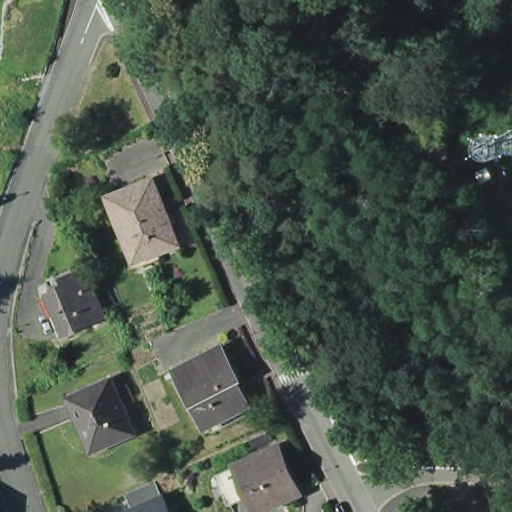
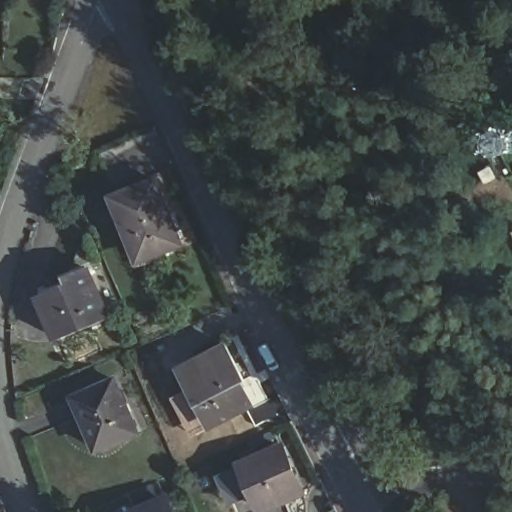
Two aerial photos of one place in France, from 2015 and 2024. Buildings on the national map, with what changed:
unchanged [(145,262),(133,233),(128,235),(114,200),(157,183),(183,247),(145,262)]
unchanged [(67,286),(63,280),(84,270),(106,315),(54,339),(36,301),(67,286)]
unchanged [(213,420),(186,369),(228,348),(246,382),(243,385),(254,408),(228,421),(216,427),(213,420)]
unchanged [(114,382),(138,434),(99,452),(75,399),(114,382)]
unchanged [(221,473),(244,463),(283,445),(303,489),(264,507),(257,492),(234,502),(221,473)]
unchanged [(173,512),(133,512),(166,497),(173,512)]

